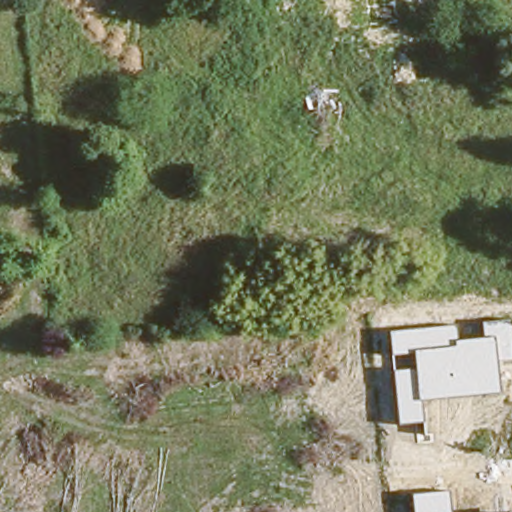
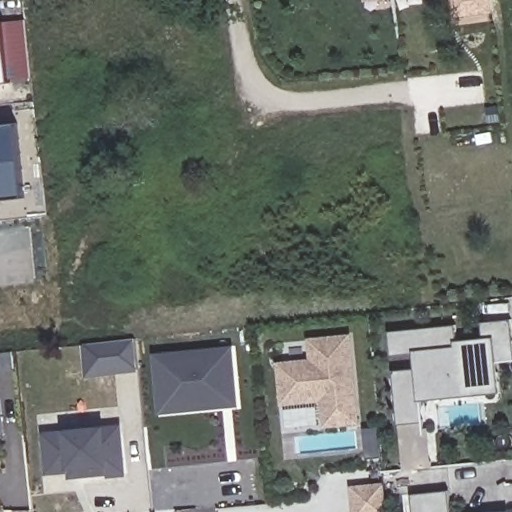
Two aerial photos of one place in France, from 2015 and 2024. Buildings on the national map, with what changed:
new [(7,81),(0,82),(0,18),(7,81)]
new [(16,124),(23,199),(0,201),(0,126),(16,124)]
unchanged [(500,394),(421,402),(423,423),(399,426),(394,371),(416,368),(415,353),(392,356),(389,333),(456,325),(457,340),(484,338),(482,323),(511,319),(512,329),(512,361),(497,362),(500,394)]
new [(309,358),(307,339),(352,334),(361,424),(323,428),(320,401),(281,404),(277,362),(309,358)]
new [(137,373),(86,379),(82,344),(135,339),(135,349),(137,373)]
new [(230,346),(236,405),(159,413),(153,354),(230,346)]
new [(5,438),(0,438),(0,386),(5,438)]
new [(42,433),(117,426),(122,472),(82,476),(81,465),(68,466),(69,469),(46,471),(42,433)]
new [(381,483),(384,512),(352,512),(349,486),(381,483)]
unchanged [(412,495),(450,492),(451,512),(413,512),(412,495)]

